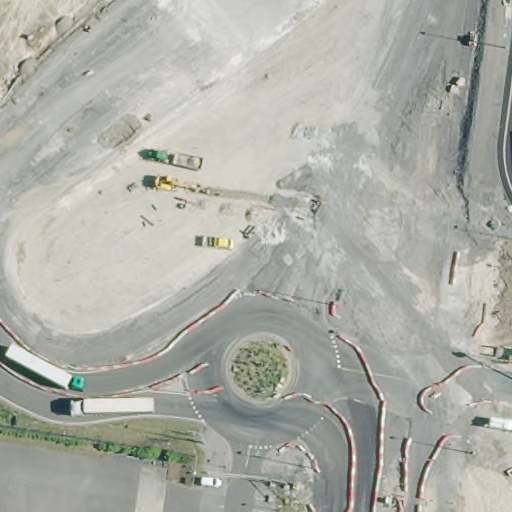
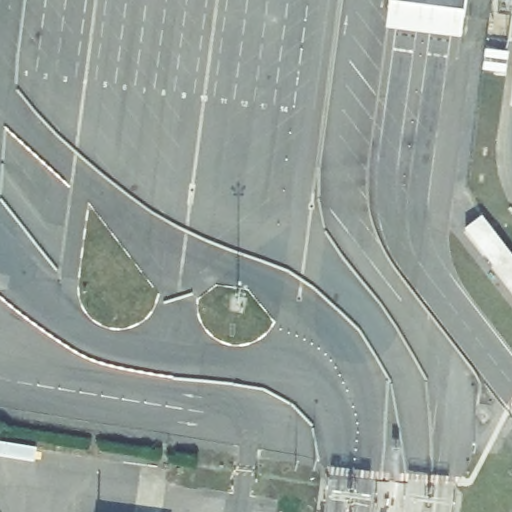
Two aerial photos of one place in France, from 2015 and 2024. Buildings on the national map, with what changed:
new [(460,50),(380,37),(385,0),(467,0),(460,50)]
new [(512,0),(512,4),(511,4),(512,0)]

